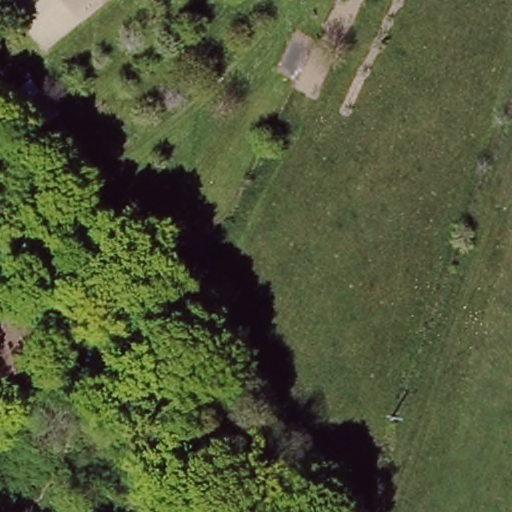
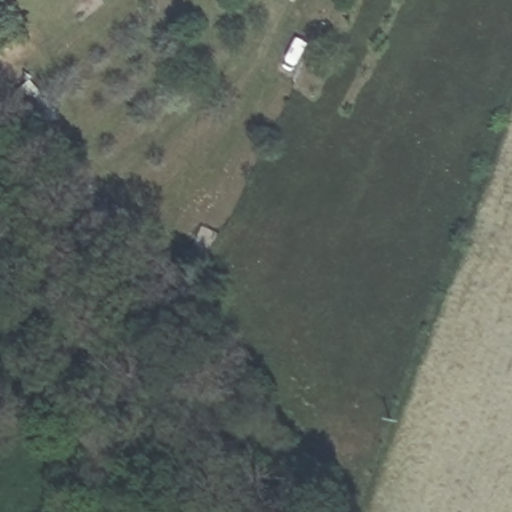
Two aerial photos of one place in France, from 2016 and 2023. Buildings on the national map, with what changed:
[]

